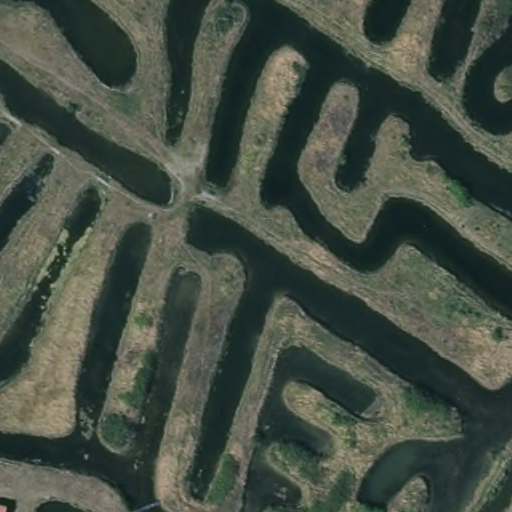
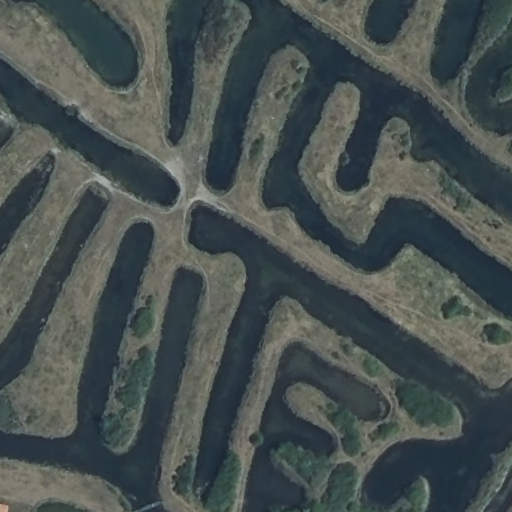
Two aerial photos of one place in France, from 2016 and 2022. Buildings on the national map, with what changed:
unchanged [(5,512),(0,512),(0,507),(5,508),(5,512)]

